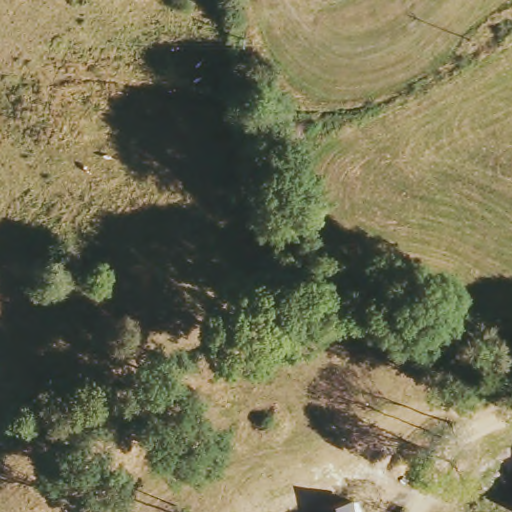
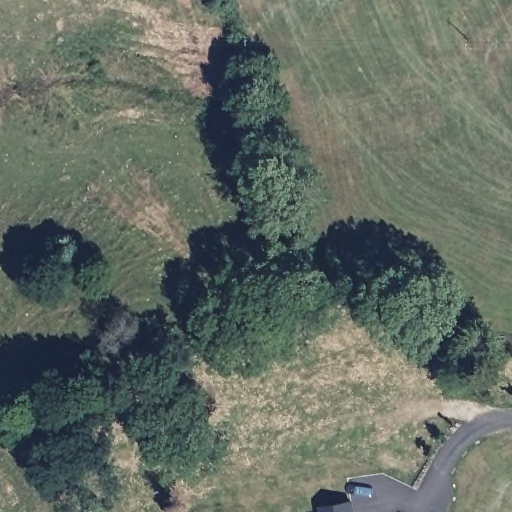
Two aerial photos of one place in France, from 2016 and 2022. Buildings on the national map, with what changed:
unchanged [(321,512),(320,506),(353,499),(356,512),(321,512)]

